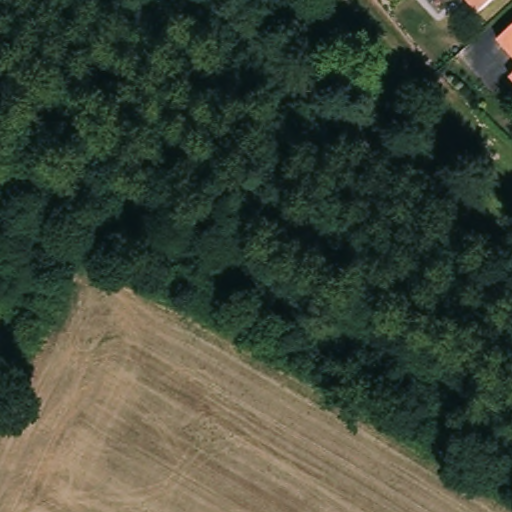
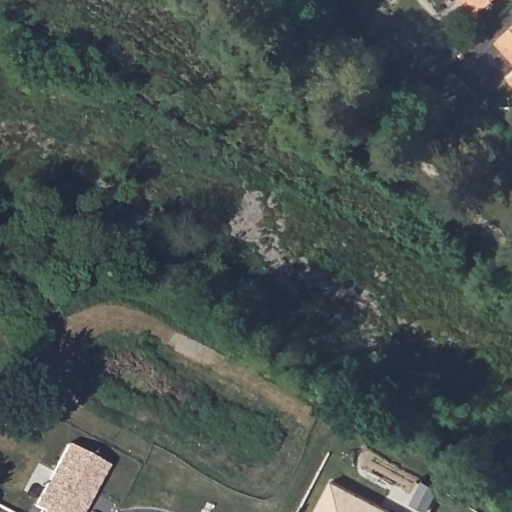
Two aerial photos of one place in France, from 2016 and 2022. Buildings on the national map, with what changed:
unchanged [(472,13),(461,0),(487,0),(472,13)]
unchanged [(512,22),(512,62),(493,40),(512,22)]
unchanged [(512,71),(512,85),(505,77),(512,71)]
new [(35,506),(67,444),(108,465),(84,512),(42,512),(44,510),(35,506)]
new [(335,475),(406,512),(316,512),(318,508),(335,475)]

